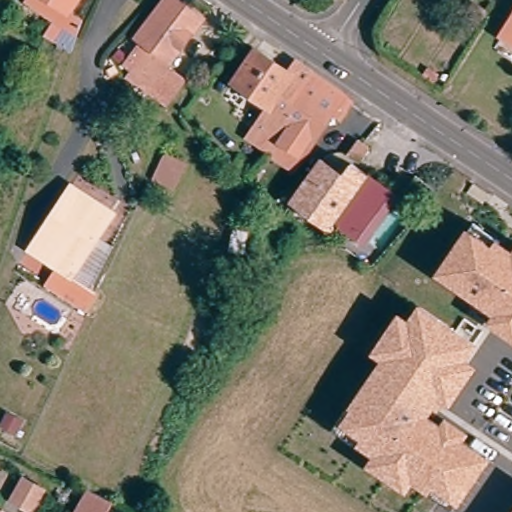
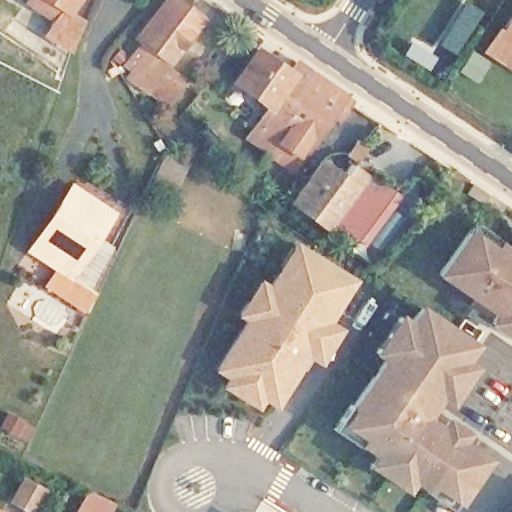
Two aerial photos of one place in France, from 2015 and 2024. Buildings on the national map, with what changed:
unchanged [(79,17),(67,47),(41,29),(50,17),(25,0),(70,0),(65,7),(79,17)]
unchanged [(182,82),(165,104),(149,91),(146,94),(126,78),(131,72),(124,67),(141,43),(137,40),(167,0),(175,0),(202,21),(165,70),(182,82)]
unchanged [(512,24),(512,43),(503,37),(512,24)]
unchanged [(266,154),(249,142),(256,131),(269,112),(228,83),(251,51),(286,76),(295,64),(309,74),(319,81),(339,94),(348,101),(338,115),(329,107),(294,158),(285,170),(265,156),(266,154)]
unchanged [(342,161),(353,146),(358,149),(363,154),(352,168),(342,161)]
unchanged [(164,154),(185,165),(173,190),(159,184),(151,180),(164,154)]
unchanged [(328,229),(324,234),(287,208),(317,167),(337,182),(346,170),(362,182),(328,229)]
unchanged [(84,280),(94,286),(85,304),(45,279),(55,262),(28,246),(56,199),(67,180),(109,206),(95,230),(109,238),(84,280)]
unchanged [(362,182),(387,199),(353,247),(328,229),(362,182)]
unchanged [(488,195),(482,204),(466,193),(472,185),(488,195)]
unchanged [(496,314),(438,274),(466,232),(472,223),(500,242),(498,244),(512,253),(512,337),(491,322),(496,314)]
new [(225,388),(231,380),(218,372),(248,322),(239,317),(258,285),(267,290),(276,274),(293,246),(302,252),(351,281),(326,323),(338,331),(319,362),(307,355),(276,407),(262,398),(257,407),(225,388)]
unchanged [(374,465),(379,457),(380,455),(366,445),(364,447),(338,429),(344,421),(355,405),(357,407),(389,360),(386,357),(379,352),(403,317),(411,322),(413,323),(424,307),(478,345),(467,361),(476,367),(452,402),(443,396),(429,417),(465,441),(432,490),(416,480),(415,482),(409,490),(374,465)]
unchanged [(7,412),(25,422),(17,437),(0,428),(0,427),(7,412)]
unchanged [(465,441),(492,459),(459,508),(432,490),(465,441)]
unchanged [(32,512),(31,512),(10,501),(22,479),(43,491),(32,512)]
unchanged [(98,512),(70,512),(83,486),(97,492),(106,497),(98,512)]

